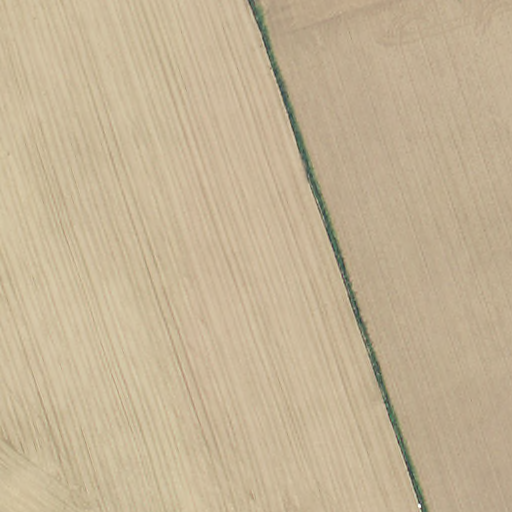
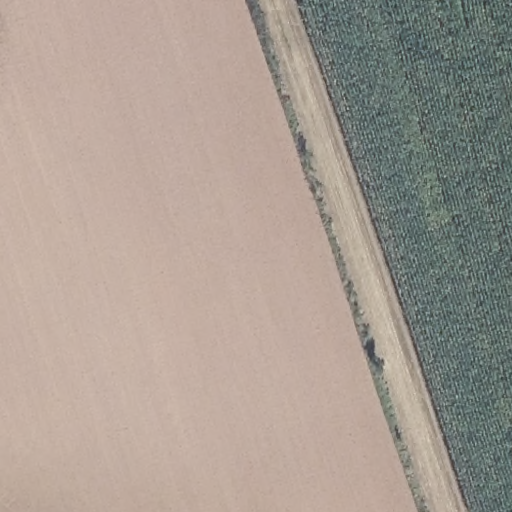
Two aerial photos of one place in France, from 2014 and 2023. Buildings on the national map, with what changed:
[]

